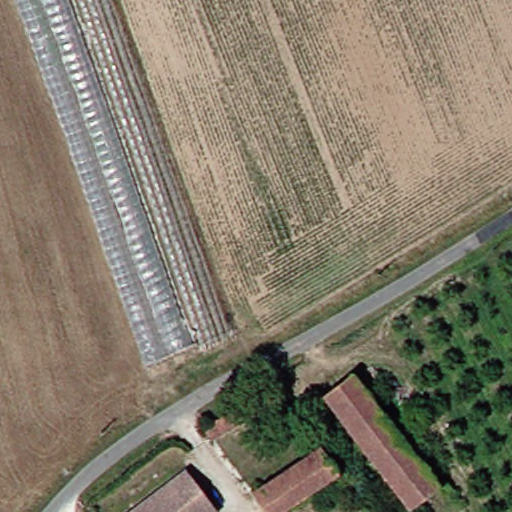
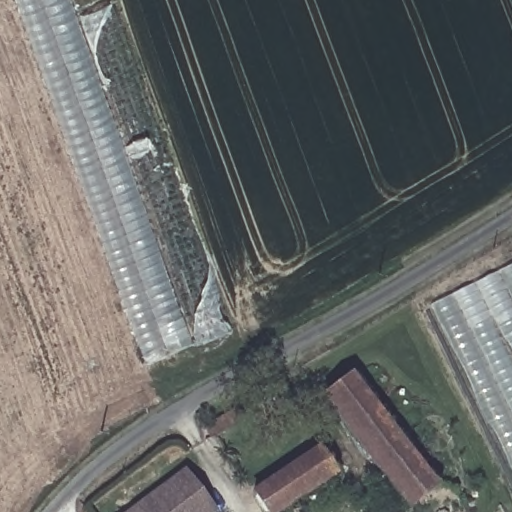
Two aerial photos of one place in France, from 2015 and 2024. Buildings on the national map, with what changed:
unchanged [(20,0),(112,0),(230,333),(145,366),(20,0)]
new [(512,264),(512,471),(430,305),(512,264)]
unchanged [(412,503),(323,396),(352,374),(439,479),(412,503)]
unchanged [(280,512),(273,512),(261,495),(320,451),(335,471),(280,512)]
unchanged [(215,512),(141,512),(190,477),(216,511),(215,512)]

